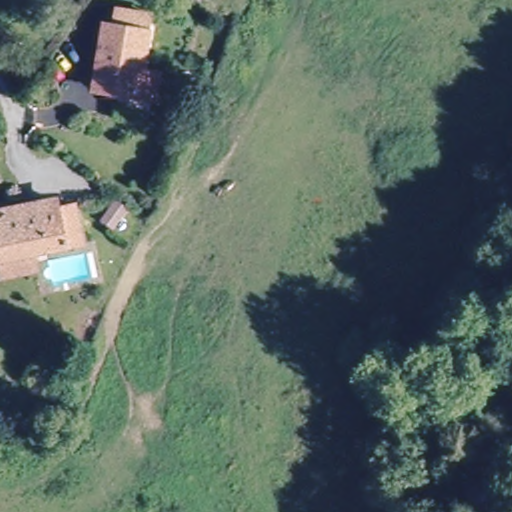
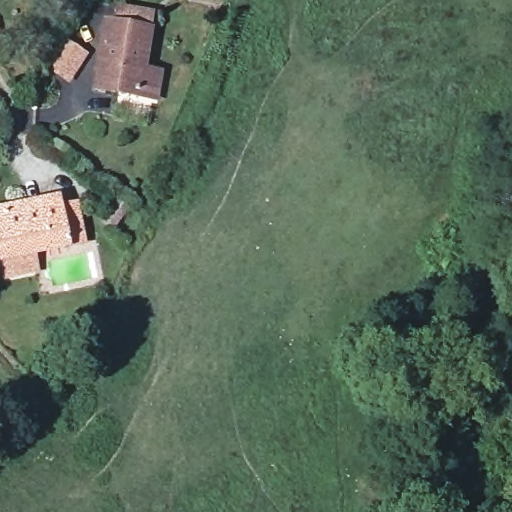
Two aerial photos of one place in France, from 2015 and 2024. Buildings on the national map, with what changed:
unchanged [(96,29),(106,30),(108,15),(140,20),(138,36),(139,36),(129,100),(86,92),(96,29)]
unchanged [(101,220),(116,200),(129,210),(114,230),(101,220)]
unchanged [(58,207),(59,214),(75,211),(83,248),(33,258),(36,275),(4,282),(1,265),(0,265),(0,218),(24,214),(38,211),(58,207)]

